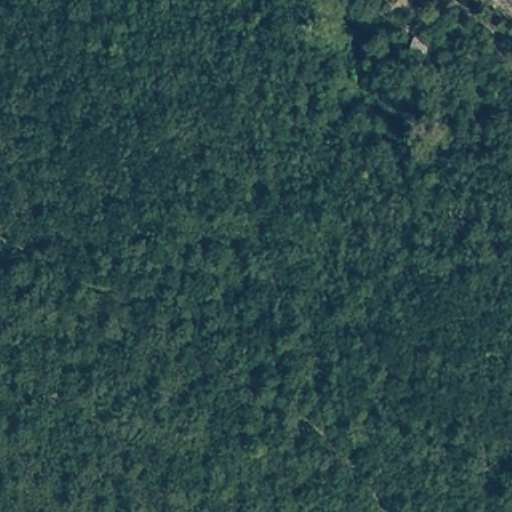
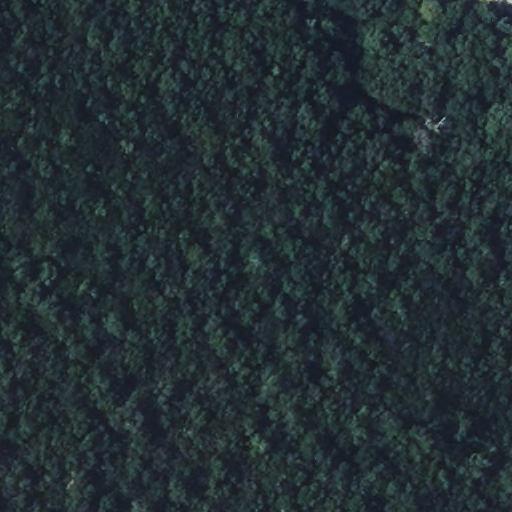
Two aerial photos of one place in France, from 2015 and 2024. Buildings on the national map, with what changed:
unchanged [(409,55),(412,37),(432,41),(426,60),(409,55)]

